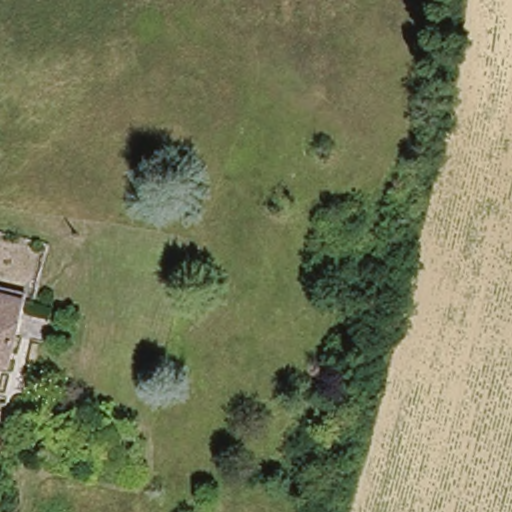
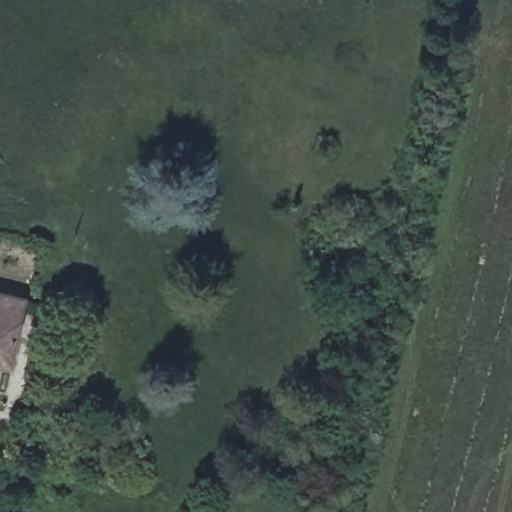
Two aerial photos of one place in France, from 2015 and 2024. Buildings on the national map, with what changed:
unchanged [(5,366),(0,364),(0,288),(23,295),(5,366)]

